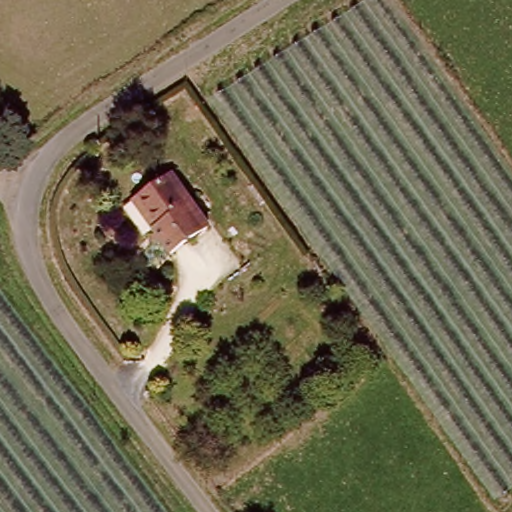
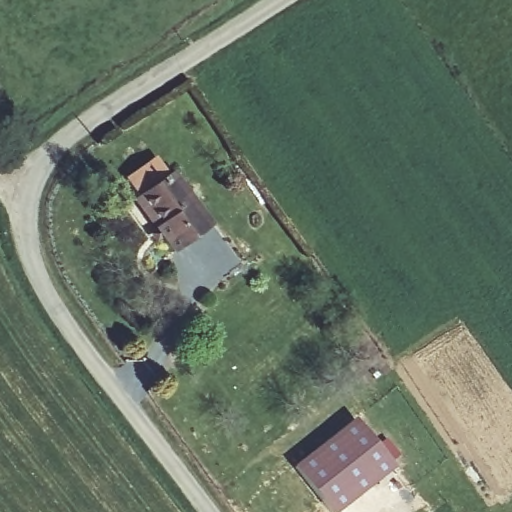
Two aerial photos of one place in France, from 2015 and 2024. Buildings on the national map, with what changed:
unchanged [(143,197),(178,172),(216,225),(174,256),(156,231),(136,201),(143,197)]
new [(327,512),(292,466),(354,418),(393,468),(336,512),(327,512)]

